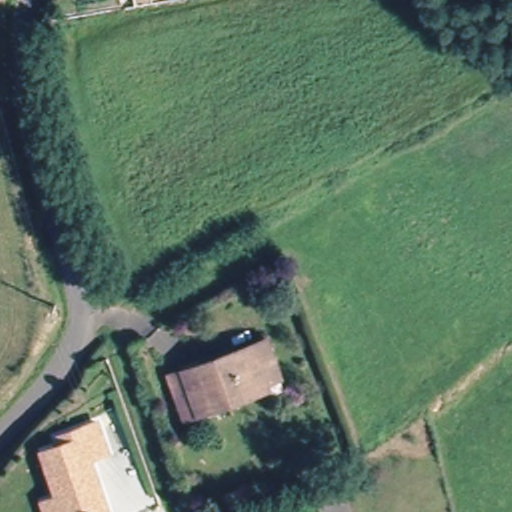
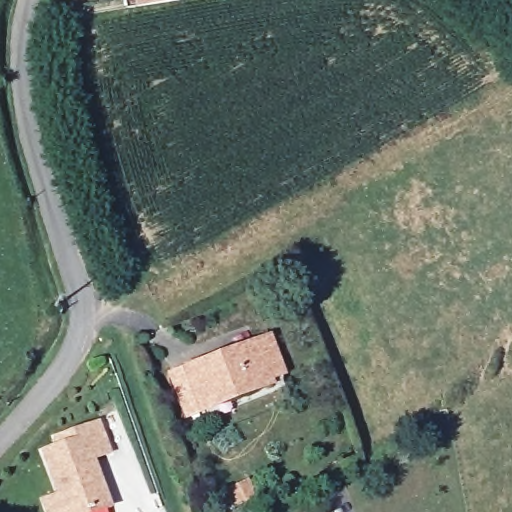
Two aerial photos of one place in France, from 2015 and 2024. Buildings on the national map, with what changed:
unchanged [(174,377),(188,371),(270,338),(285,373),(270,378),(272,382),(204,410),(190,415),(174,377)]
unchanged [(48,510),(61,505),(49,472),(62,467),(55,448),(94,433),(105,463),(90,468),(107,512),(49,512),(48,510)]
unchanged [(248,497),(254,512),(227,512),(225,507),(248,497)]

